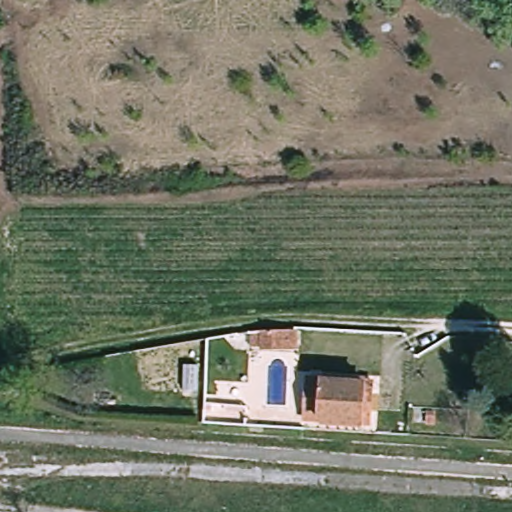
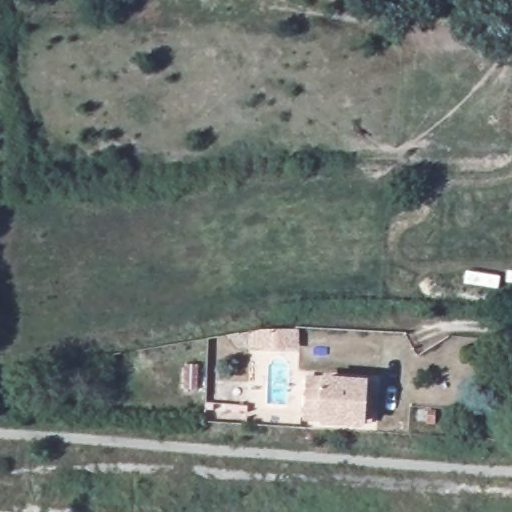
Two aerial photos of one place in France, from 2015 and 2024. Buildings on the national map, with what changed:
unchanged [(300,326),(300,327),(300,346),(264,346),(264,341),(255,341),(254,327),(300,326)]
unchanged [(368,378),(367,418),(308,416),(311,376),(368,378)]
unchanged [(205,401),(248,404),(247,423),(205,421),(205,401)]

